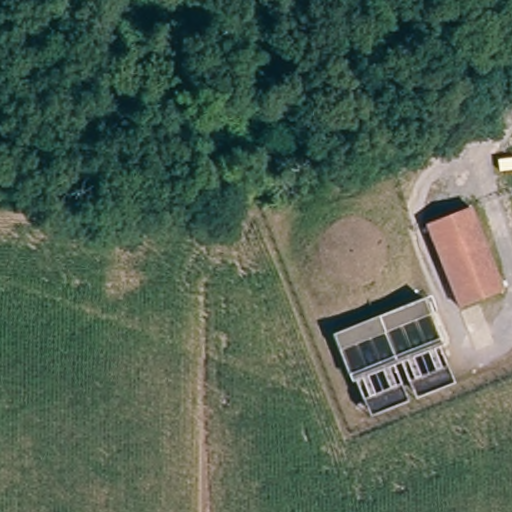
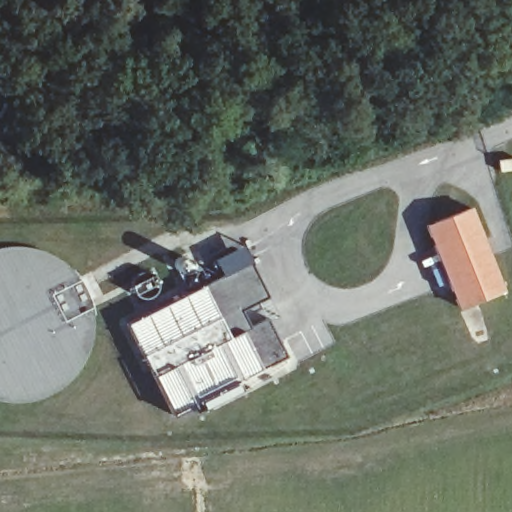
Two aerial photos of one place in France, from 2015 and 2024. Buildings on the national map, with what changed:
unchanged [(502,290),(455,310),(426,236),(473,217),(502,290)]
new [(269,298),(259,303),(288,356),(267,368),(270,374),(196,412),(192,406),(175,413),(127,324),(221,275),(212,260),(242,244),(269,298)]
demolished [(430,336),(345,373),(331,337),(415,303),(430,336)]
demolished [(389,363),(426,347),(437,372),(400,391),(389,363)]
demolished [(355,378),(384,367),(393,393),(364,405),(355,378)]

